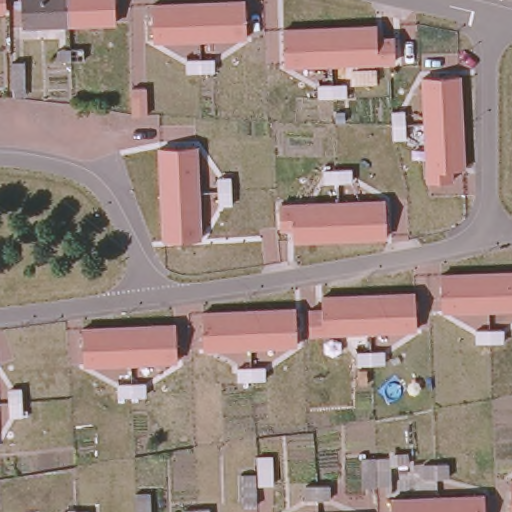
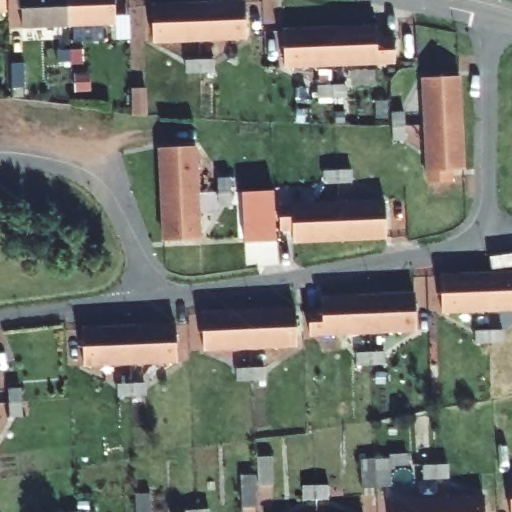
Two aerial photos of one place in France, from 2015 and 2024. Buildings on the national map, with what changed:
unchanged [(68,24),(22,25),(21,0),(68,0),(68,24)]
unchanged [(115,22),(68,24),(68,0),(114,0),(115,22)]
unchanged [(233,0),(246,0),(247,38),(199,40),(197,1),(233,0)]
unchanged [(199,40),(152,41),(152,4),(197,1),(199,40)]
unchanged [(377,61),(330,63),(330,27),(375,25),(377,61)]
unchanged [(330,63),(285,65),(285,28),(330,27),(330,63)]
unchanged [(70,49),(82,48),(83,59),(70,60),(55,60),(55,49),(70,49)]
unchanged [(200,63),(213,62),(213,75),(200,76),(188,76),(187,63),(200,63)]
unchanged [(427,125),(424,77),(458,74),(462,123),(427,125)]
unchanged [(345,88),(345,98),(332,99),(319,99),(318,89),(332,89),(345,88)]
unchanged [(387,113),(400,112),(401,126),(402,137),(390,138),(388,127),(387,113)]
unchanged [(427,125),(462,123),(464,168),(429,170),(427,125)]
unchanged [(166,198),(164,150),(200,149),(202,196),(166,198)]
unchanged [(322,167),(335,166),(349,166),(349,176),(335,177),(323,177),(322,167)]
unchanged [(222,178),(234,176),(235,189),(235,204),(223,204),(222,190),(222,178)]
new [(245,242),(242,192),(275,190),(277,241),(245,242)]
unchanged [(202,196),(204,243),(167,245),(166,198),(202,196)]
unchanged [(385,236),(338,238),(337,202),(384,200),(385,236)]
unchanged [(292,239),(291,204),(337,202),(338,238),(292,239)]
unchanged [(441,274),(486,272),(488,309),(442,310),(441,274)]
unchanged [(486,272),(512,272),(512,308),(488,309),(486,272)]
unchanged [(369,294),(414,292),(417,328),(370,330),(369,294)]
unchanged [(369,294),(370,330),(324,332),(322,297),(369,294)]
unchanged [(248,309),(293,307),(297,344),(250,346),(248,309)]
unchanged [(250,346),(203,348),(202,312),(248,309),(250,346)]
unchanged [(128,325),(175,323),(177,359),(130,361),(128,325)]
unchanged [(130,361),(84,364),(82,327),(128,325),(130,361)]
unchanged [(490,335),(502,334),(502,345),(490,345),(477,346),(477,335),(490,335)]
unchanged [(372,356),(383,355),(383,366),(372,367),(358,368),(358,357),(372,356)]
unchanged [(251,371),(263,371),(264,381),(252,382),(239,383),(238,372),(251,371)]
unchanged [(119,388),(131,388),(145,387),(145,398),(132,398),(120,398),(119,388)]
unchanged [(12,400),(12,388),(23,388),(25,400),(25,413),(13,413),(12,400)]
unchanged [(423,461),(436,461),(449,460),(450,472),(437,472),(424,473),(423,461)]
unchanged [(303,484),(317,483),(330,482),(330,493),(317,494),(304,495),(303,484)]
unchanged [(439,512),(438,497),(485,495),(486,512),(439,512)]
unchanged [(438,497),(439,512),(392,512),(392,499),(438,497)]
unchanged [(197,506),(210,505),(210,512),(183,512),(183,506),(197,506)]

